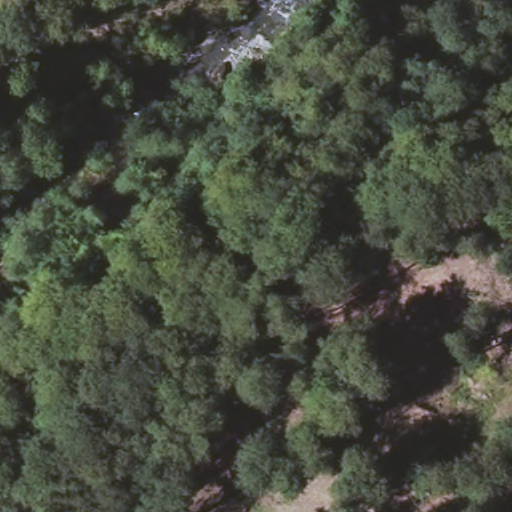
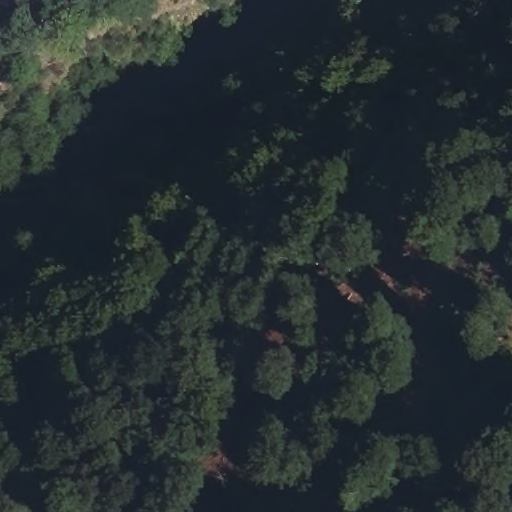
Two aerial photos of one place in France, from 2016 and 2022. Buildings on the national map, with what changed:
[]

